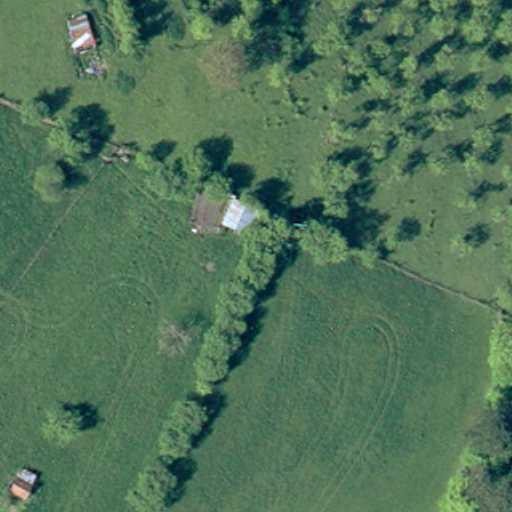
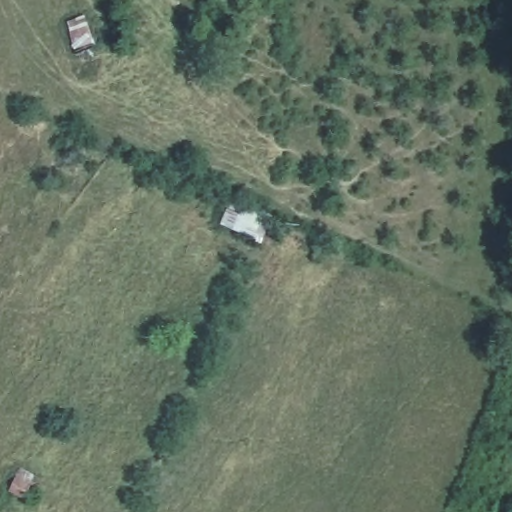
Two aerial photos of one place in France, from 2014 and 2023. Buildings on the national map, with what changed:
unchanged [(90,28),(100,75),(78,78),(68,31),(90,28)]
unchanged [(7,487),(18,466),(32,473),(22,495),(7,487)]

